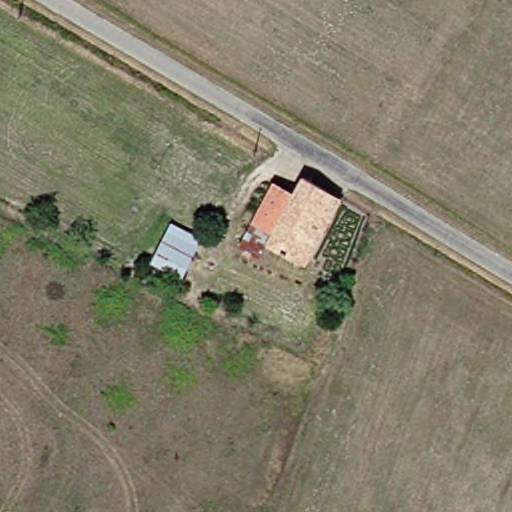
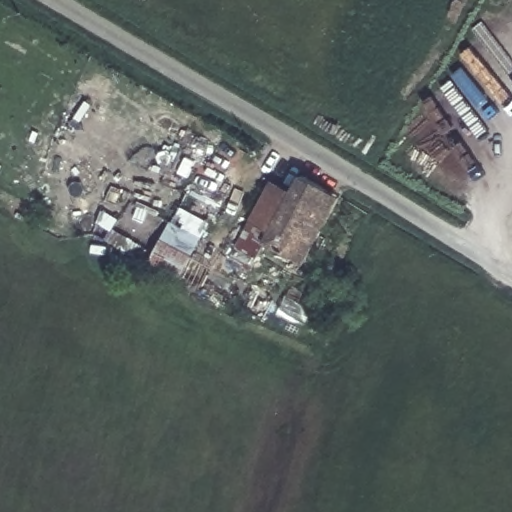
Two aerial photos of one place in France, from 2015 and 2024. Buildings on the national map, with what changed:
unchanged [(257,228),(279,187),(298,198),(307,182),(333,196),(299,261),(272,246),(263,262),(244,252),(257,228)]
unchanged [(167,224),(195,238),(177,276),(148,262),(167,224)]

